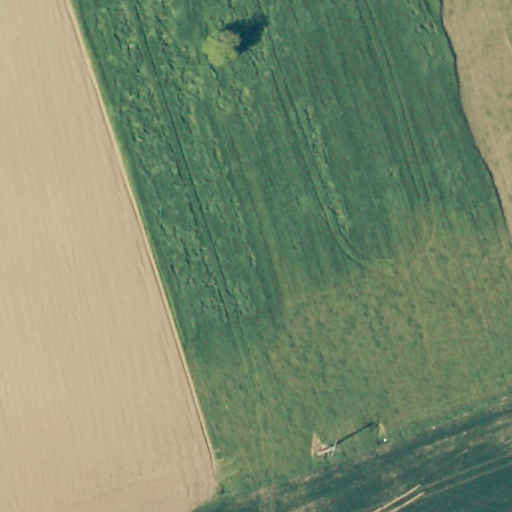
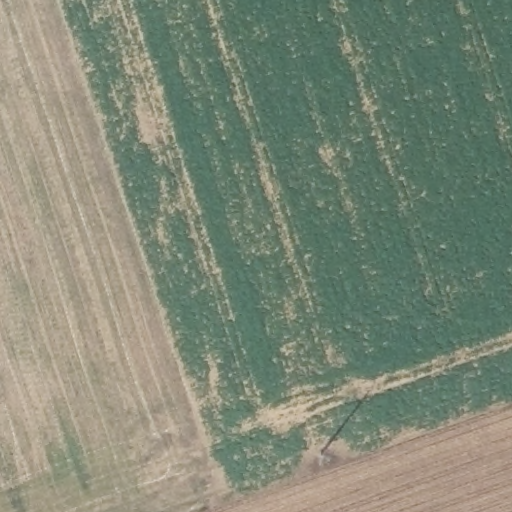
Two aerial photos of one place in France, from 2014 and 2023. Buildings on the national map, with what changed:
[]

